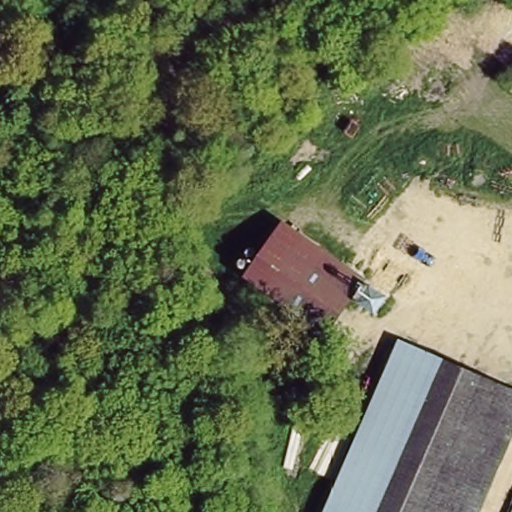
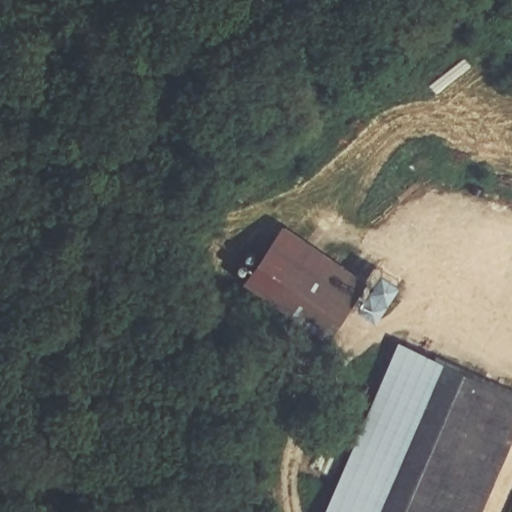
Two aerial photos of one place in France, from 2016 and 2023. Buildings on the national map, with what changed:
unchanged [(387,292),(374,312),(350,295),(352,291),(357,284),(290,234),(256,280),(243,270),(237,265),(252,246),(260,251),(284,220),(360,277),(365,273),(387,292)]
unchanged [(357,284),(352,291),(325,333),(265,287),(256,280),(290,234),(357,284)]
unchanged [(512,389),(512,443),(482,512),(320,512),(399,340),(512,389)]

